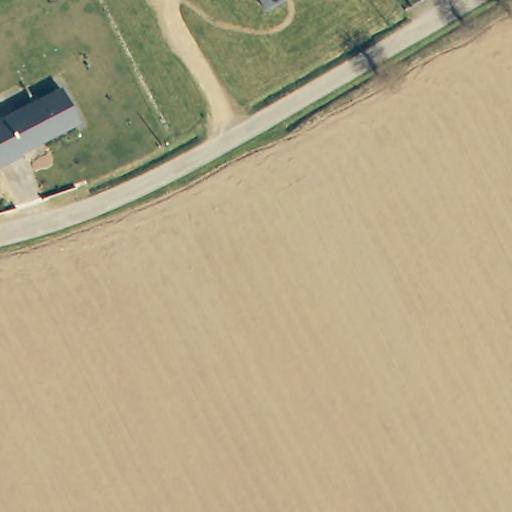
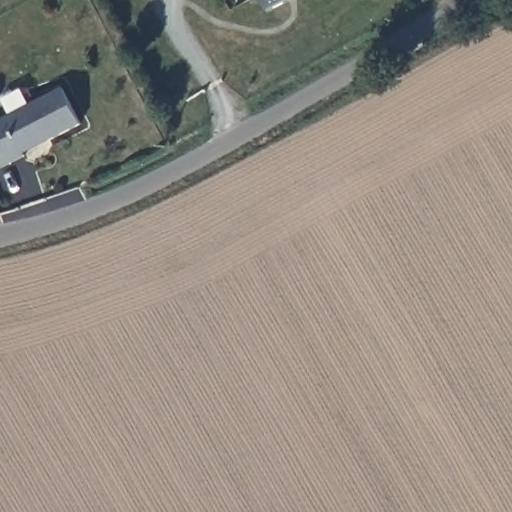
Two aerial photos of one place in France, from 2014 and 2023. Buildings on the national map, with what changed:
unchanged [(265,0),(282,0),(269,7),(265,0)]
unchanged [(83,120),(51,136),(50,134),(25,147),(27,151),(1,165),(0,163),(0,117),(64,85),(83,120)]

